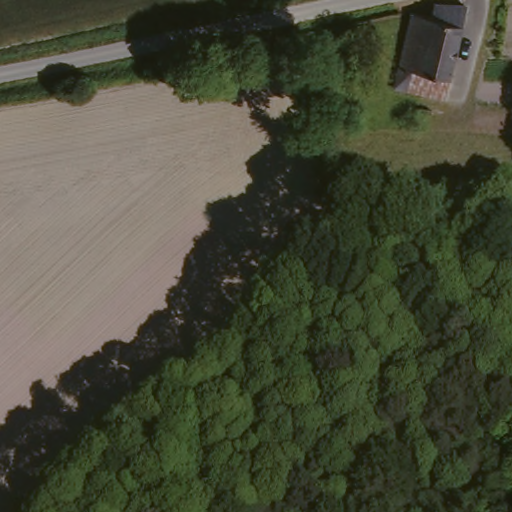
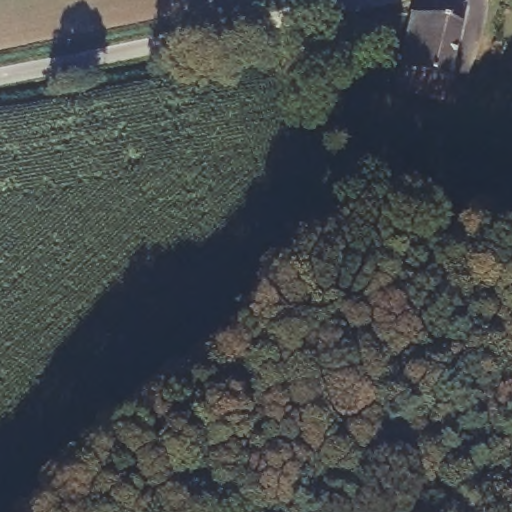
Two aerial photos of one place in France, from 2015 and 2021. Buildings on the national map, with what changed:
unchanged [(410,92),(395,90),(413,11),(429,13),(431,5),(443,2),(467,0),(450,77),(445,97),(410,92)]

